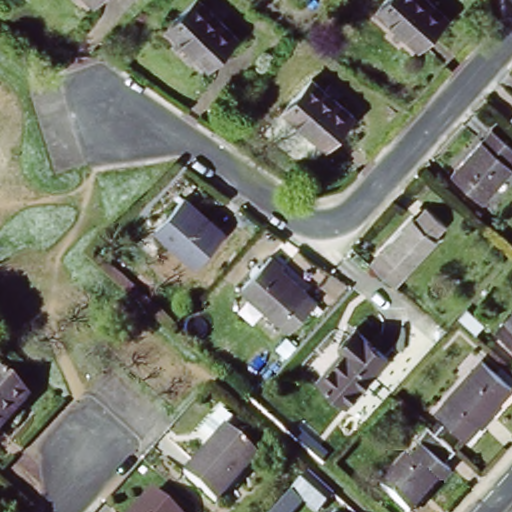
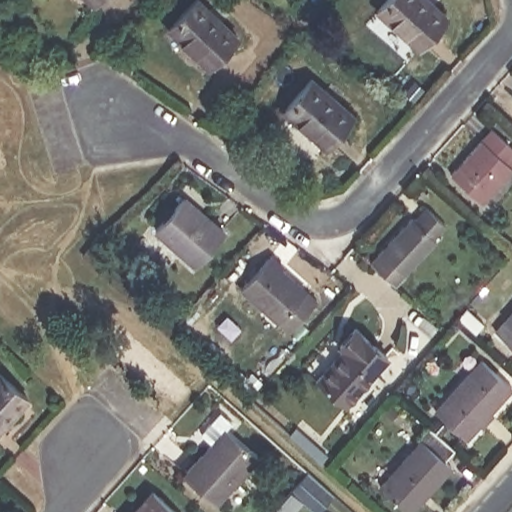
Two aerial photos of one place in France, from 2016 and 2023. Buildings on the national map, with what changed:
unchanged [(95,0),(100,0),(98,2),(95,0)]
unchanged [(170,30),(197,0),(202,0),(245,36),(213,69),(170,30)]
unchanged [(376,5),(382,0),(431,0),(449,20),(415,49),(376,5)]
unchanged [(324,145),(281,104),(314,73),(357,113),(324,145)]
unchanged [(495,128),(512,143),(512,174),(486,201),(455,173),(495,128)]
unchanged [(201,261),(159,226),(188,196),(228,230),(201,261)]
unchanged [(376,269),(424,217),(442,232),(431,245),(436,249),(398,289),(376,269)]
unchanged [(288,329),(244,290),(275,256),(319,293),(288,329)]
unchanged [(512,317),(512,341),(500,330),(512,317)]
unchanged [(317,376),(361,329),(393,360),(349,404),(317,376)]
unchanged [(492,408),(496,412),(481,427),(447,397),(485,357),(512,381),(512,387),(492,408)]
unchanged [(3,372),(35,401),(0,436),(0,374),(3,372)]
unchanged [(188,471),(231,424),(263,455),(221,501),(188,471)]
unchanged [(452,475),(417,512),(405,512),(381,488),(415,451),(409,445),(422,430),(452,456),(442,467),(452,475)]
unchanged [(336,490),(322,505),(307,492),(291,512),(271,512),(296,483),(310,466),(336,490)]
unchanged [(160,491),(183,512),(139,512),(160,491)]

